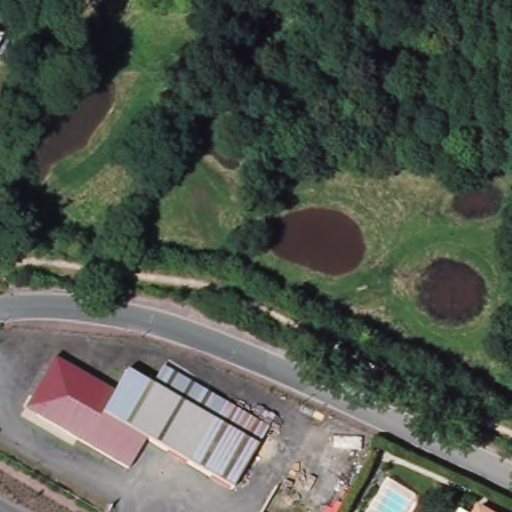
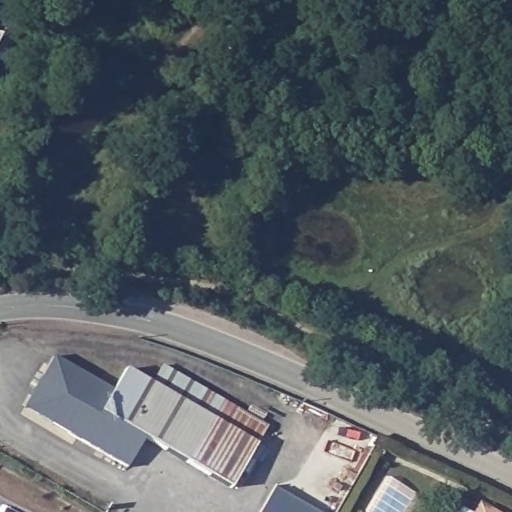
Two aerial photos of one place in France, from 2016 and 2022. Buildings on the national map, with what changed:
unchanged [(102,412),(144,437),(127,469),(25,411),(54,357),(115,390),(102,412)]
unchanged [(233,488),(102,412),(127,369),(152,384),(162,364),(268,427),(233,488)]
demolished [(276,483),(324,512),(260,512),(276,483)]
unchanged [(476,511),(477,512),(475,512),(476,511)]

